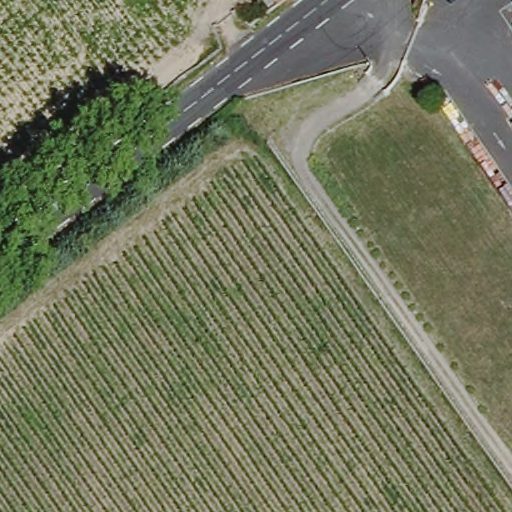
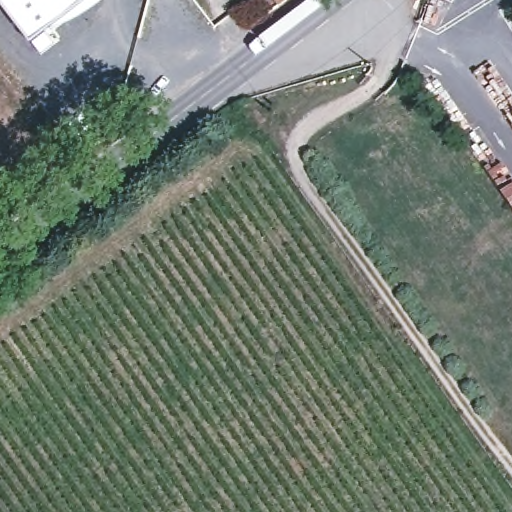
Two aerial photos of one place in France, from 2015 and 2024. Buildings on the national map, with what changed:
new [(0,2),(0,0),(90,0),(32,43),(0,2)]

